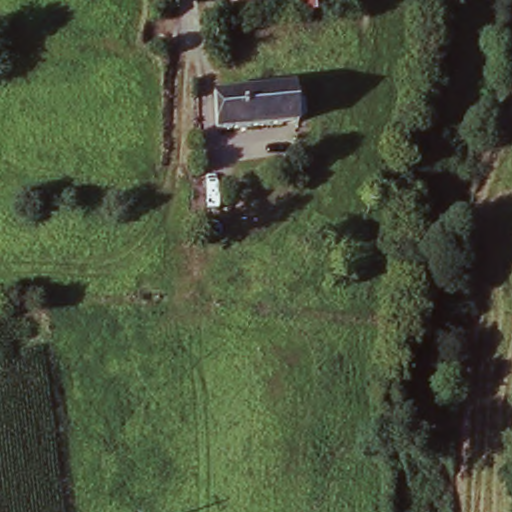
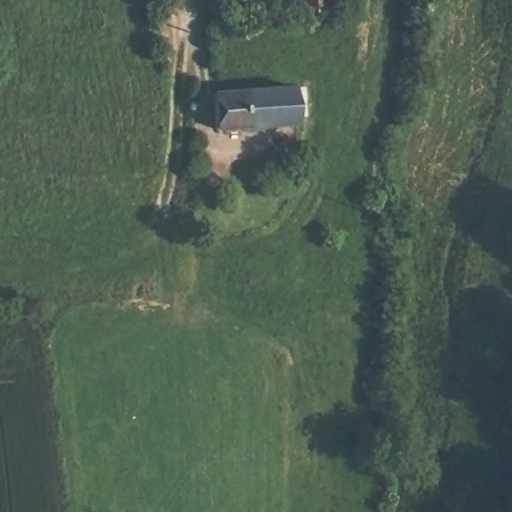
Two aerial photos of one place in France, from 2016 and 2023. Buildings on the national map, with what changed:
unchanged [(331,14),(298,16),(298,0),(330,0),(331,14)]
unchanged [(297,127),(216,133),(214,97),(295,92),(297,127)]

